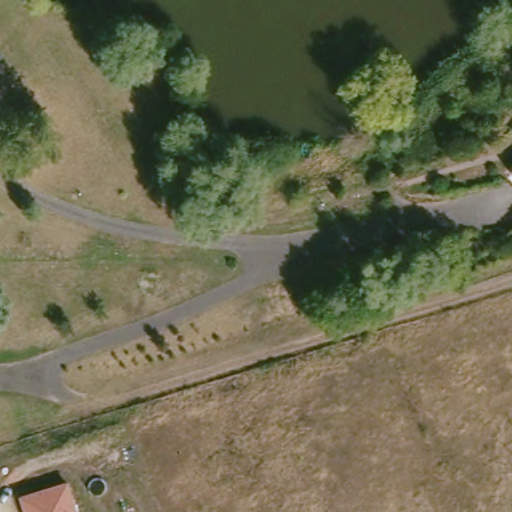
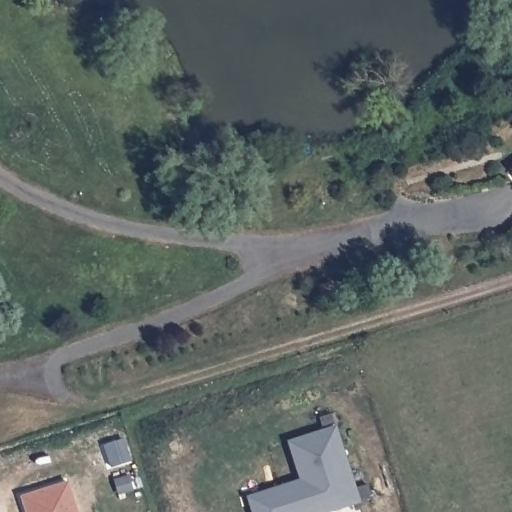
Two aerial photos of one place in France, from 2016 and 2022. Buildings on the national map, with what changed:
new [(299,480),(289,440),(336,427),(361,504),(333,512),(252,512),(248,498),(299,480)]
unchanged [(79,512),(27,512),(22,497),(69,480),(79,512)]

